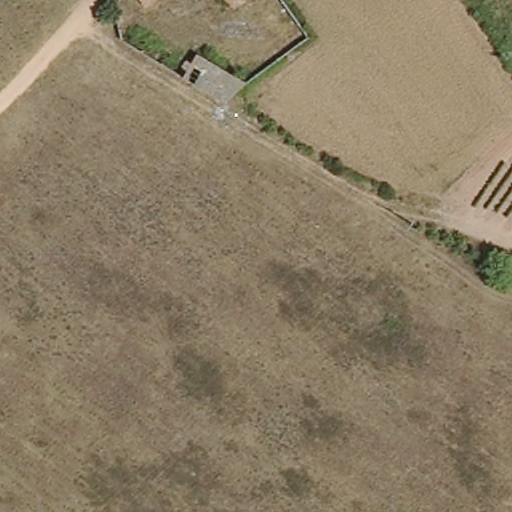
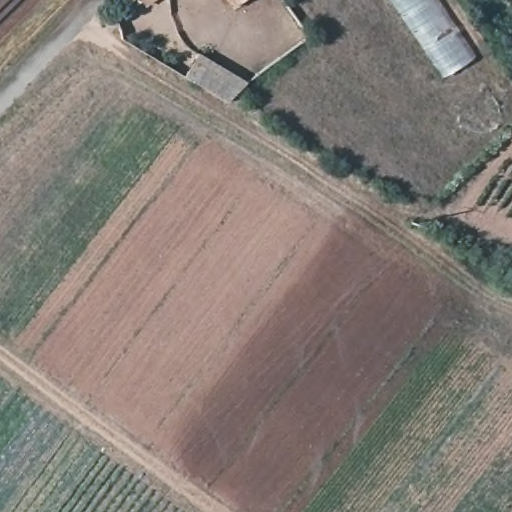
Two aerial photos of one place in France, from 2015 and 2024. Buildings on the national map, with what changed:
unchanged [(140,0),(153,0),(146,6),(140,0)]
unchanged [(227,0),(237,0),(232,5),(227,0)]
new [(447,76),(395,0),(439,0),(477,56),(447,76)]
unchanged [(193,54),(236,83),(220,102),(178,75),(193,54)]

